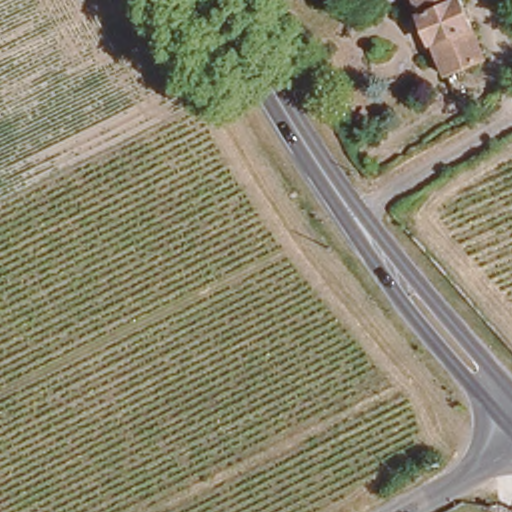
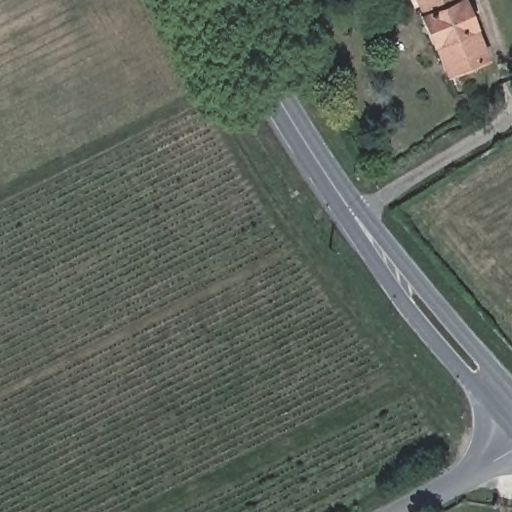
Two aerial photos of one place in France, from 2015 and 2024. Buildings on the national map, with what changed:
unchanged [(456,101),(449,85),(437,55),(434,57),(422,29),(426,27),(416,0),(459,0),(487,67),(460,80),(467,96),(456,101)]

